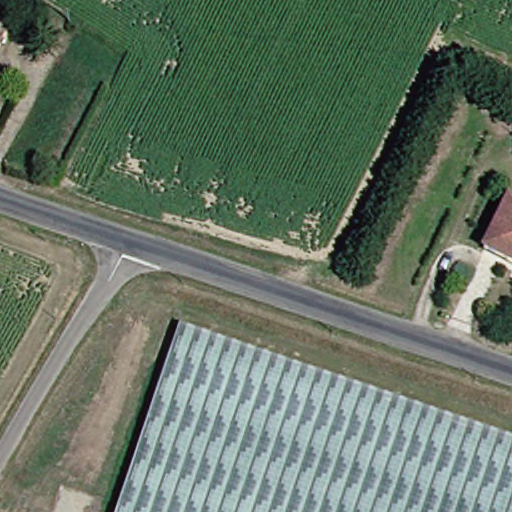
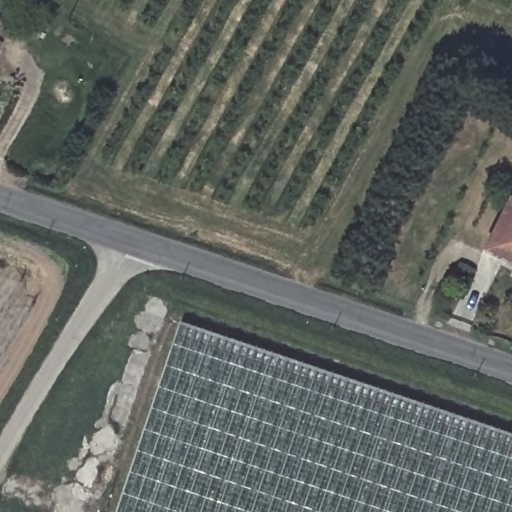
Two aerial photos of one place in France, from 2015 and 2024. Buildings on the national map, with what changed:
unchanged [(475,241),(497,195),(512,202),(512,259),(475,241)]
unchanged [(512,436),(512,512),(111,512),(174,323),(512,436)]

